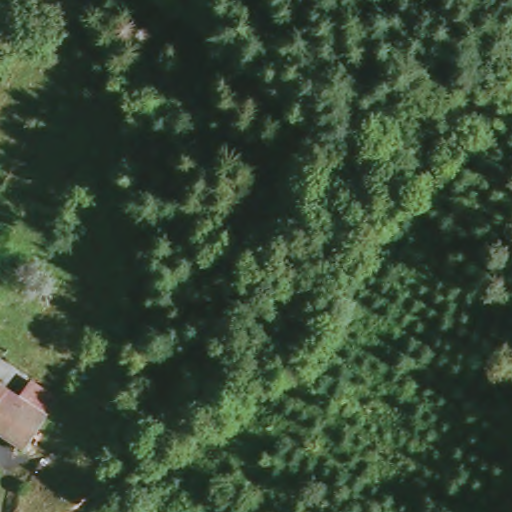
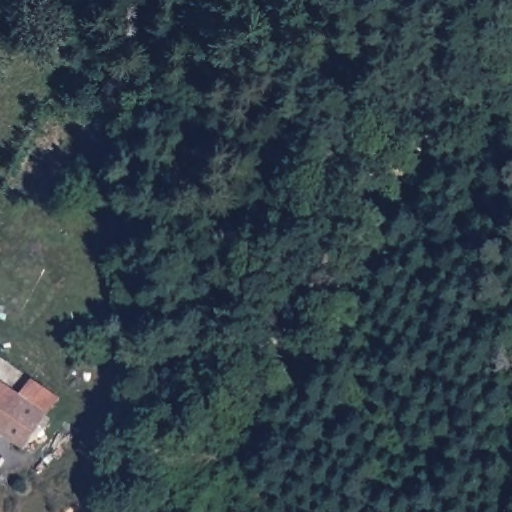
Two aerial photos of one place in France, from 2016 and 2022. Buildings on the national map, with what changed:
unchanged [(46,412),(33,436),(24,449),(0,432),(0,382),(20,395),(30,379),(56,396),(46,412)]

